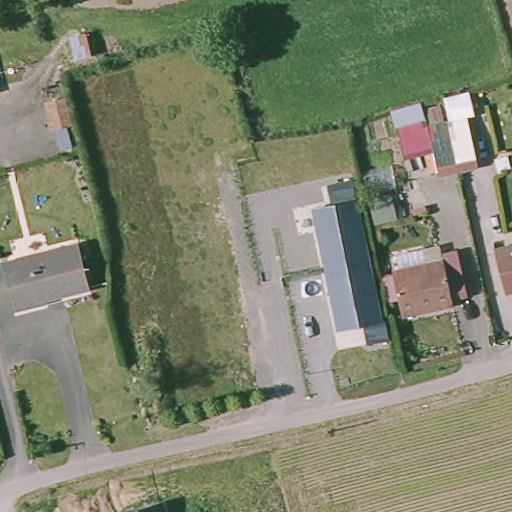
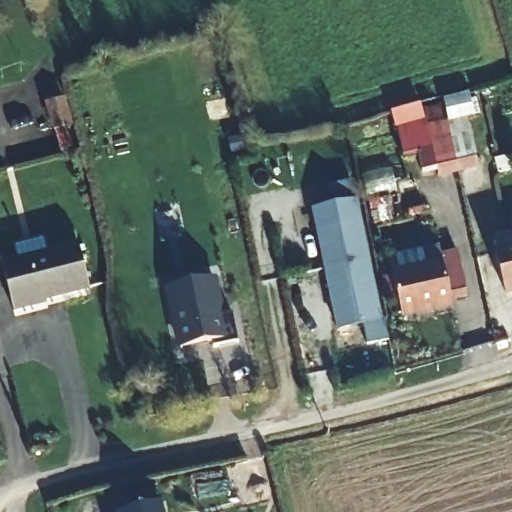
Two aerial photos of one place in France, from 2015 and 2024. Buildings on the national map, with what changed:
unchanged [(391,110),(422,100),(424,108),(437,104),(442,119),(451,118),(444,95),(471,90),(484,88),(486,101),(487,104),(474,105),(477,115),(468,118),(479,168),(439,178),(431,174),(422,135),(431,134),(429,126),(399,135),(391,110)]
unchanged [(311,198),(344,190),(379,335),(345,343),(311,198)]
unchanged [(79,247),(89,292),(40,302),(41,309),(11,315),(0,264),(26,258),(79,247)]
unchanged [(500,255),(512,252),(512,297),(500,255)]
unchanged [(453,263),(459,294),(447,296),(449,308),(403,318),(392,278),(453,263)]
new [(233,306),(238,335),(214,341),(213,335),(201,337),(200,328),(178,333),(167,279),(213,269),(221,308),(233,306)]
unchanged [(164,501),(167,512),(122,512),(164,501)]

